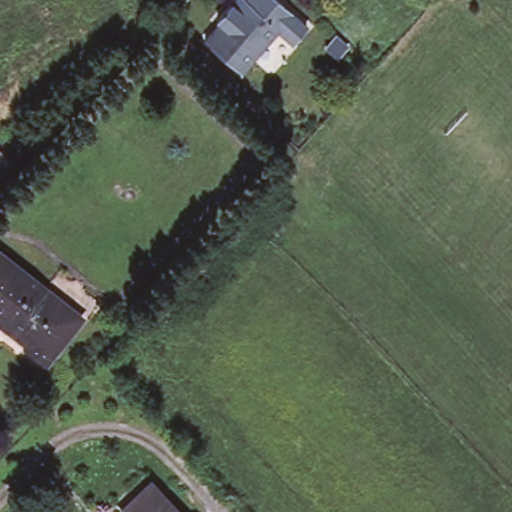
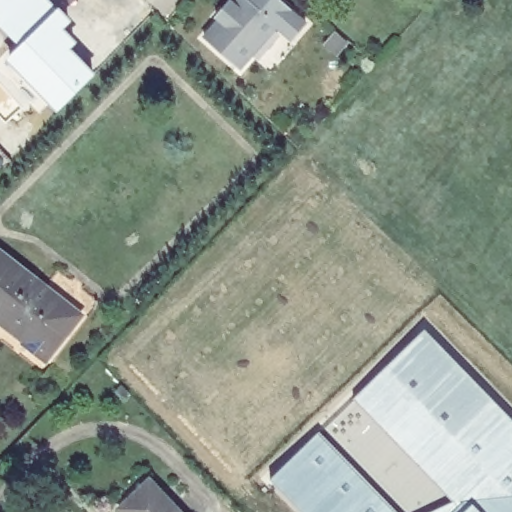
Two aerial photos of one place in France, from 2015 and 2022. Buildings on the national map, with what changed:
new [(65,30),(78,42),(71,50),(95,74),(57,113),(6,61),(19,47),(0,27),(0,0),(50,0),(72,22),(65,30)]
unchanged [(291,42),(278,29),(238,70),(204,38),(218,22),(215,18),(229,3),(233,5),(239,0),(277,0),(304,26),(291,42)]
unchanged [(42,359),(23,343),(31,333),(6,313),(1,318),(0,317),(0,253),(78,312),(42,359)]
new [(512,405),(512,512),(420,512),(436,498),(352,393),(428,316),(512,405)]
new [(254,483),(309,432),(385,512),(281,512),(254,483)]
unchanged [(177,512),(121,512),(120,510),(149,483),(177,512)]

